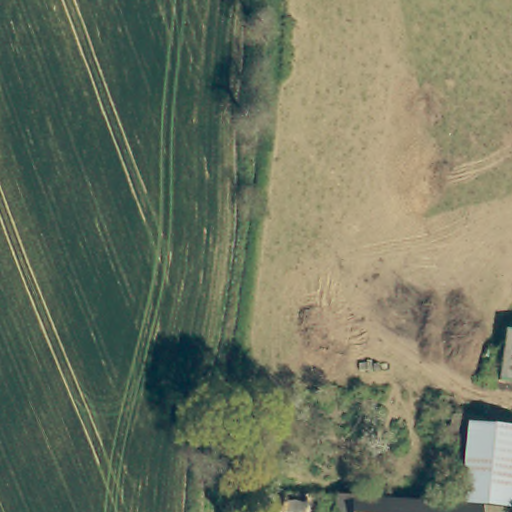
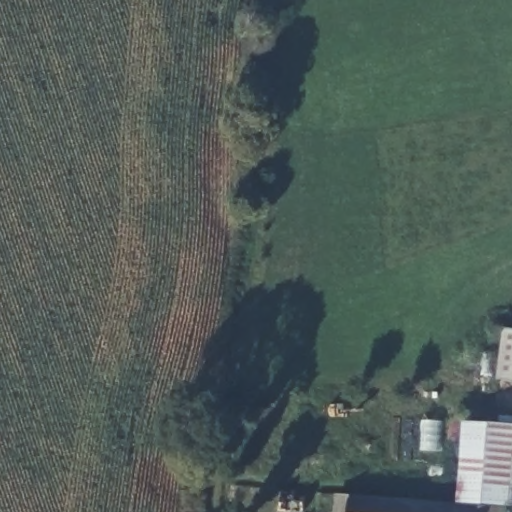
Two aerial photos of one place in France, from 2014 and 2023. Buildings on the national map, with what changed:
unchanged [(506,326),(512,328),(512,379),(499,377),(506,326)]
unchanged [(458,506),(469,420),(512,428),(512,476),(508,510),(458,506)]
unchanged [(401,500),(458,506),(508,510),(508,512),(342,512),(344,495),(401,500)]
unchanged [(275,512),(276,499),(303,502),(301,512),(275,512)]

